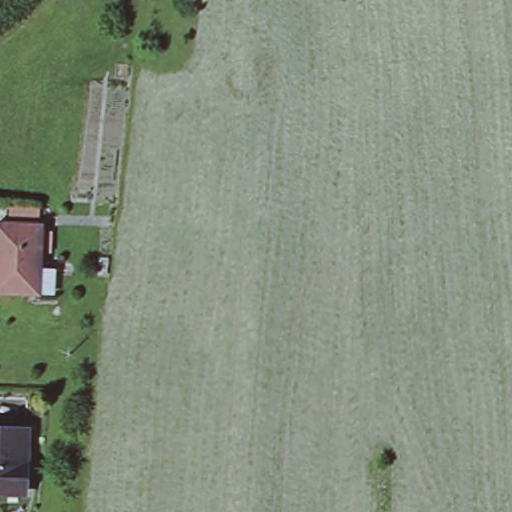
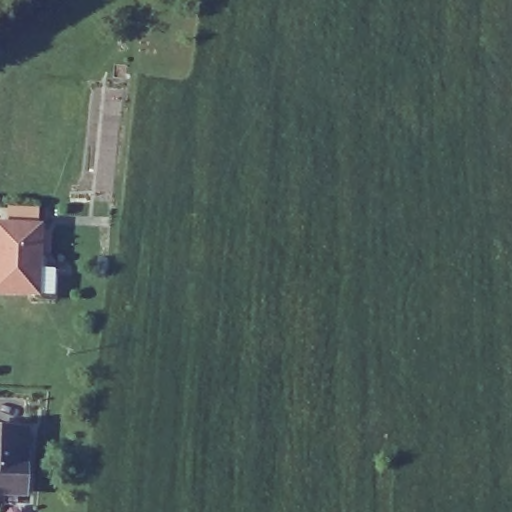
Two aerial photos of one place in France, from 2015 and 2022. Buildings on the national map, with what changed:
unchanged [(41,225),(38,293),(0,292),(0,224),(41,225)]
unchanged [(25,430),(24,492),(0,492),(0,429),(25,430)]

